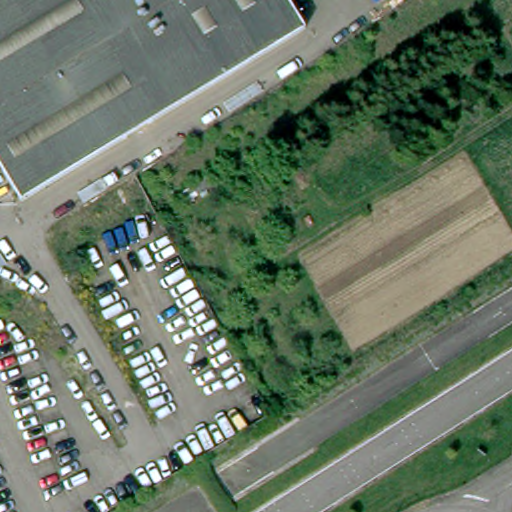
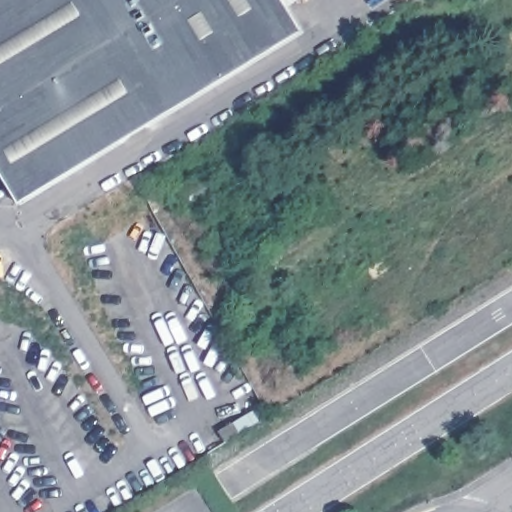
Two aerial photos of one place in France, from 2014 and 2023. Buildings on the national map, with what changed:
unchanged [(286,7),(15,188),(0,163),(0,0),(299,0),(286,7)]
unchanged [(286,7),(302,34),(23,202),(15,188),(286,7)]

